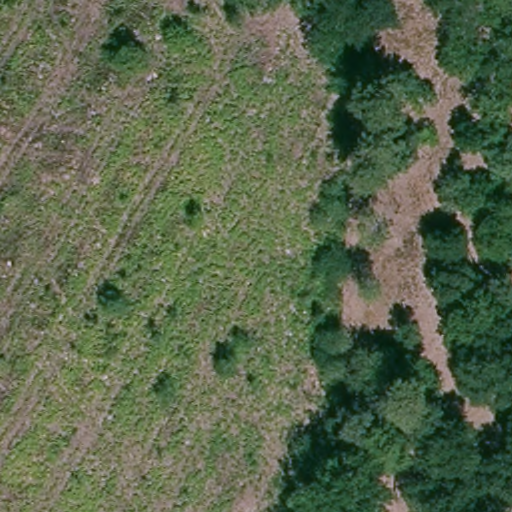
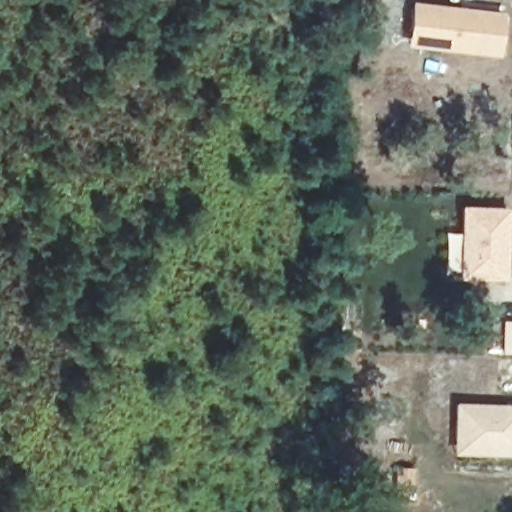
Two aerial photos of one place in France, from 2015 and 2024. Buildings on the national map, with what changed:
new [(405,46),(411,2),(503,13),(499,56),(405,46)]
new [(505,280),(457,278),(460,206),(507,209),(505,280)]
new [(502,322),(512,322),(512,354),(501,355),(502,322)]
new [(512,411),(512,459),(485,458),(454,456),(455,444),(456,408),(512,411)]
new [(380,433),(395,434),(393,456),(379,456),(380,433)]

